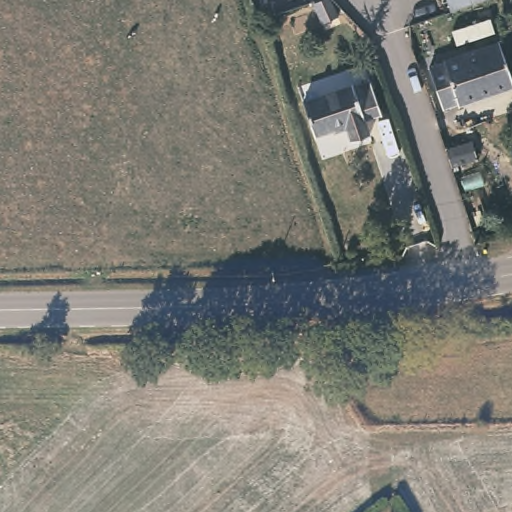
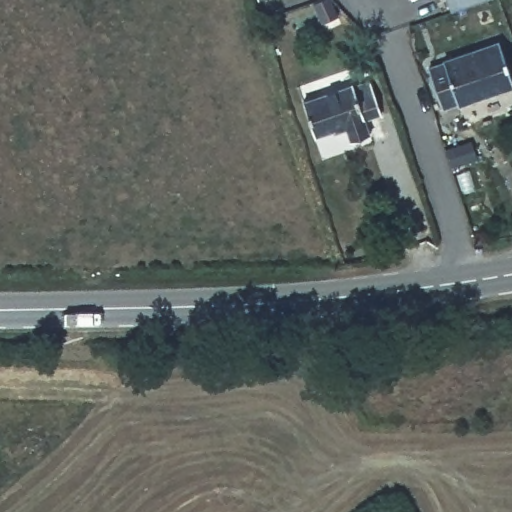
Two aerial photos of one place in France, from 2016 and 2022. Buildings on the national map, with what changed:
unchanged [(334,15),(329,3),(337,0),(344,0),(349,10),(352,17),(337,23),(334,15)]
unchanged [(449,10),(446,0),(492,0),(449,10)]
unchanged [(512,75),(512,91),(461,107),(459,103),(443,109),(430,68),(447,63),(446,59),(501,41),(512,75)]
unchanged [(380,115),(365,119),(371,139),(352,145),(346,126),(317,135),(305,101),(354,85),(354,88),(371,83),(380,115)]

